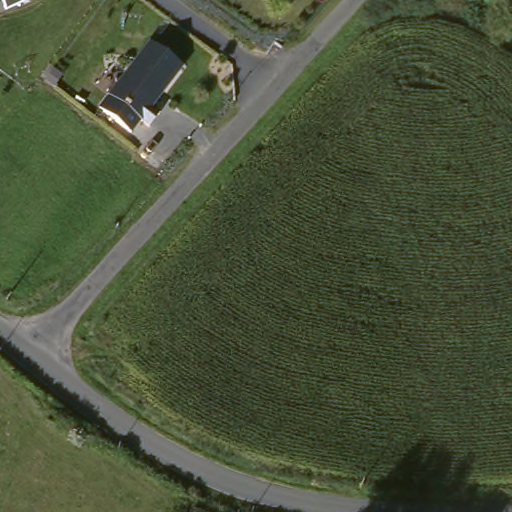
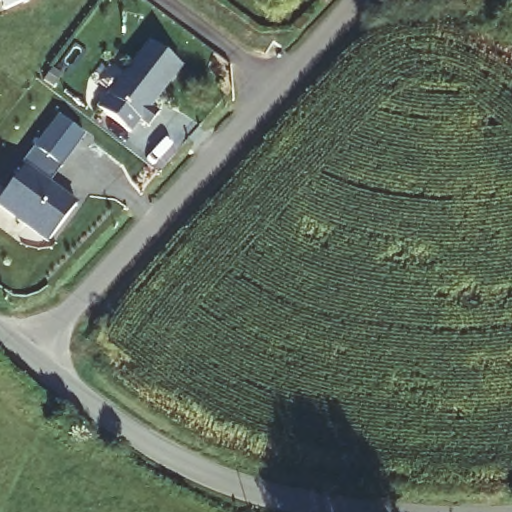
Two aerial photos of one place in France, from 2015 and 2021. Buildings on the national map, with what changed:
unchanged [(1,13),(0,11),(0,0),(31,0),(1,13)]
unchanged [(152,43),(184,68),(154,108),(161,114),(151,128),(110,96),(152,43)]
new [(51,181),(79,202),(48,243),(0,208),(0,199),(26,164),(23,162),(59,115),(86,134),(51,181)]

